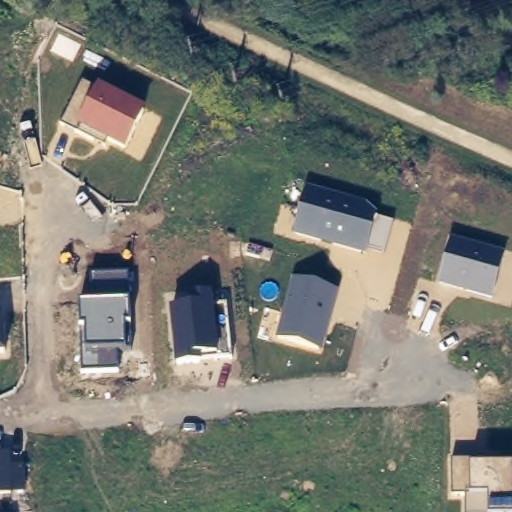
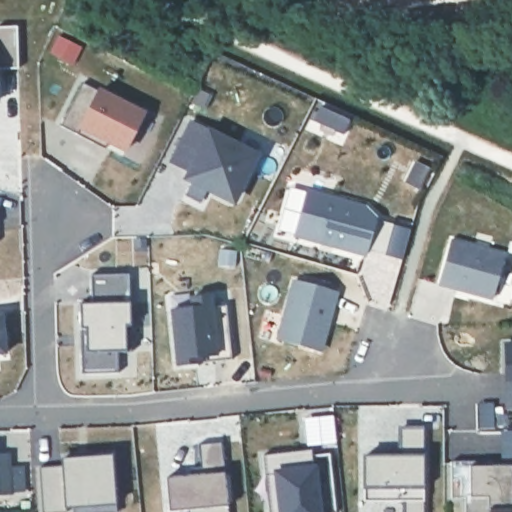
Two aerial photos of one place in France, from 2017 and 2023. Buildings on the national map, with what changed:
new [(17,69),(0,69),(0,27),(16,27),(17,69)]
unchanged [(127,154),(108,145),(105,147),(62,125),(82,84),(97,95),(100,89),(145,112),(127,154)]
new [(190,122),(257,156),(236,199),(229,201),(190,182),(187,175),(189,172),(170,162),(190,122)]
unchanged [(367,205),(377,216),(376,221),(393,225),(383,256),(368,252),(367,257),(292,237),(307,188),(367,205)]
unchanged [(505,255),(492,301),(438,287),(451,241),(505,255)]
unchanged [(80,305),(93,305),(92,274),(128,273),(130,325),(125,324),(125,351),(118,350),(118,372),(82,374),(80,305)]
unchanged [(340,291),(322,352),(277,339),(294,278),(340,291)]
unchanged [(196,306),(195,293),(213,292),(215,307),(226,306),(231,360),(177,367),(171,309),(196,306)]
unchanged [(7,354),(0,355),(0,314),(4,313),(7,354)]
new [(507,344),(512,344),(512,407),(507,407),(507,387),(507,344)]
new [(363,489),(363,457),(399,457),(399,429),(422,428),(423,512),(404,512),(404,502),(384,502),(363,502),(363,489)]
new [(202,475),(200,444),(222,442),(230,512),(206,512),(206,509),(175,512),(170,512),(167,478),(202,475)]
new [(309,449),(310,455),(329,452),(335,512),(267,512),(266,502),(263,476),(261,455),(300,450),(309,449)]
unchanged [(12,465),(24,464),(24,492),(0,494),(0,455),(12,454),(12,465)]
new [(65,508),(65,512),(41,512),(39,467),(62,466),(62,460),(111,458),(114,512),(71,512),(70,509),(85,508),(65,508)]
unchanged [(512,460),(512,512),(465,512),(465,497),(452,497),(451,462),(512,460)]

